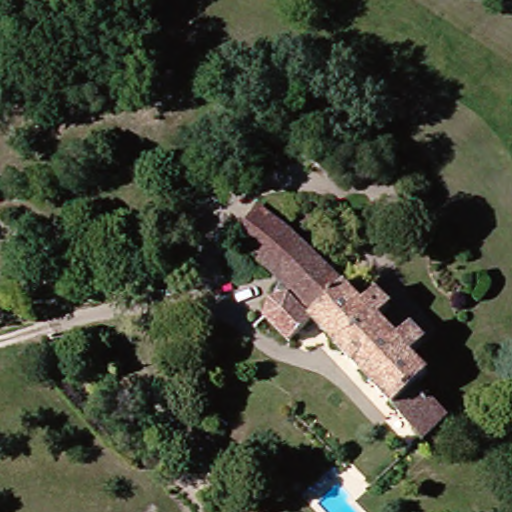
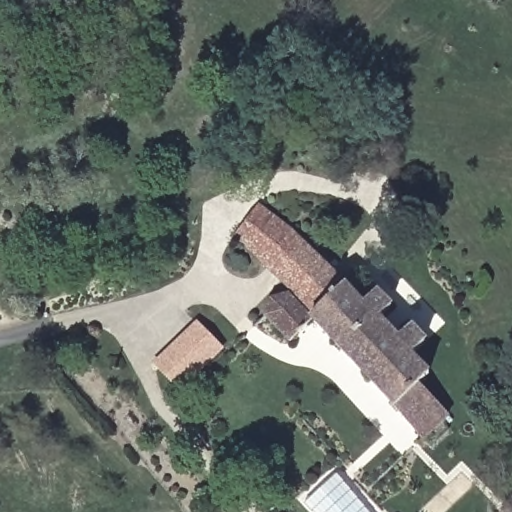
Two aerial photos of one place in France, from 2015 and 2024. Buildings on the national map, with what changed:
unchanged [(351,303),(362,295),(363,298),(369,295),(385,311),(374,324),(392,344),(405,332),(418,347),(405,359),(420,377),(410,388),(437,419),(412,441),(303,320),(278,341),(259,319),(264,302),(277,301),(284,294),(232,234),(253,207),(280,233),(351,303)]
new [(182,391),(154,362),(198,320),(225,348),(182,391)]

